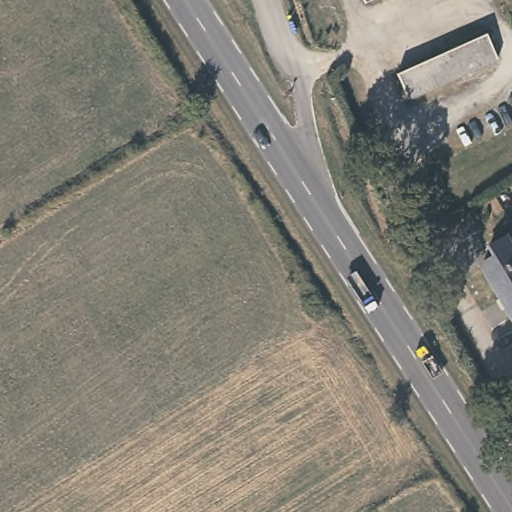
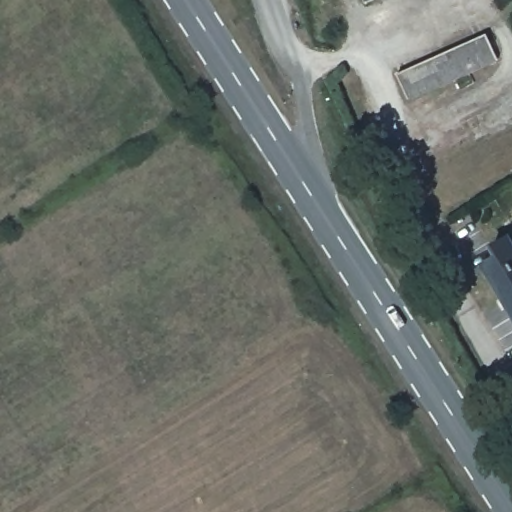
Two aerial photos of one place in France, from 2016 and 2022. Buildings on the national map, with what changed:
unchanged [(361,0),(383,0),(365,8),(361,0)]
unchanged [(496,64),(406,104),(395,79),(485,39),(496,64)]
unchanged [(512,246),(512,320),(505,307),(500,310),(496,301),(500,299),(480,266),(495,257),(490,248),(507,237),(512,246)]

